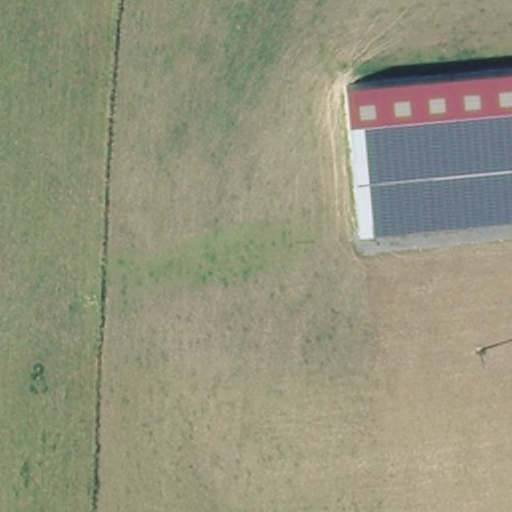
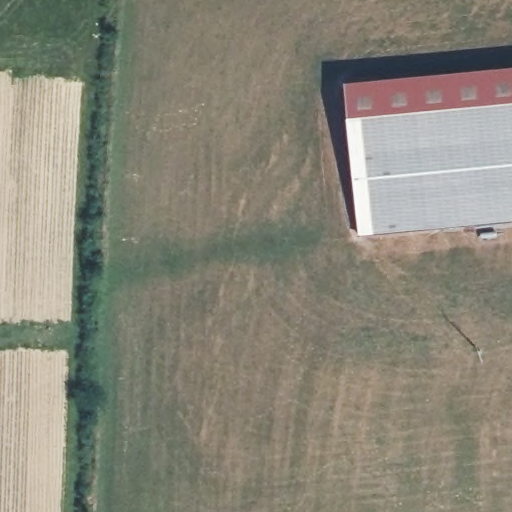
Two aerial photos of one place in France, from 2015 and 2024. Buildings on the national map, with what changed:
unchanged [(391,82),(512,70),(512,221),(391,234),(360,237),(357,211),(343,87),(391,82)]

